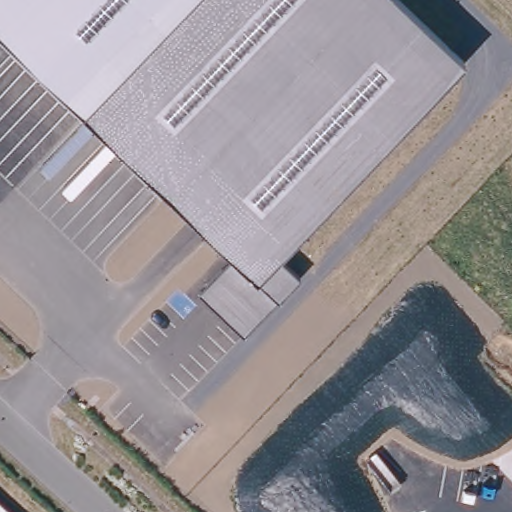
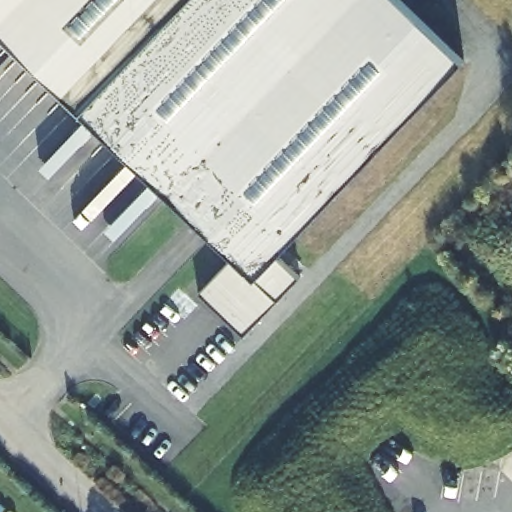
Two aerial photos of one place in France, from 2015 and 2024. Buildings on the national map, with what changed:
unchanged [(79,113),(0,36),(0,0),(189,0),(79,113)]
unchanged [(461,59),(274,256),(297,280),(244,334),(202,293),(235,259),(79,113),(189,0),(399,0),(461,59)]

